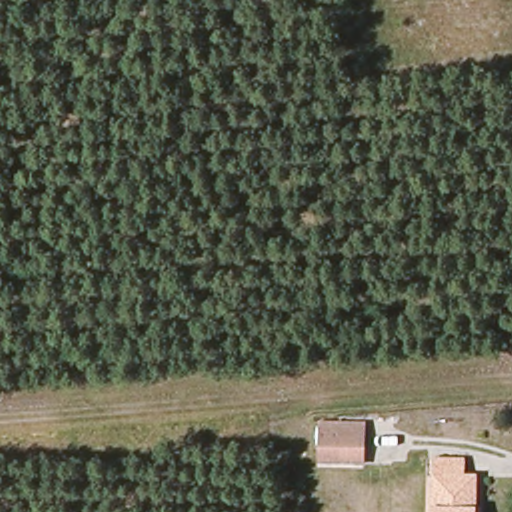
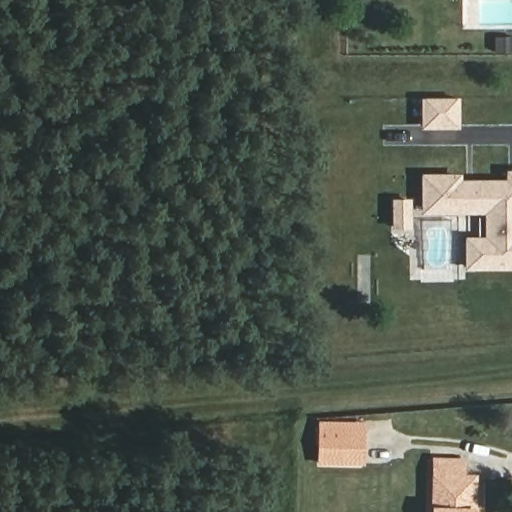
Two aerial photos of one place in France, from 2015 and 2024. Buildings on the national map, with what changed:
new [(459,128),(421,128),(420,96),(459,95),(459,128)]
new [(465,235),(481,234),(482,213),(419,212),(421,172),(435,171),(434,168),(448,168),(449,172),(461,172),(461,179),(505,178),(505,169),(512,169),(512,268),(466,269),(465,235)]
unchanged [(359,467),(314,467),(314,430),(314,418),(360,416),(360,427),(359,467)]
unchanged [(435,448),(460,448),(461,466),(482,467),(479,512),(431,512),(435,448)]

